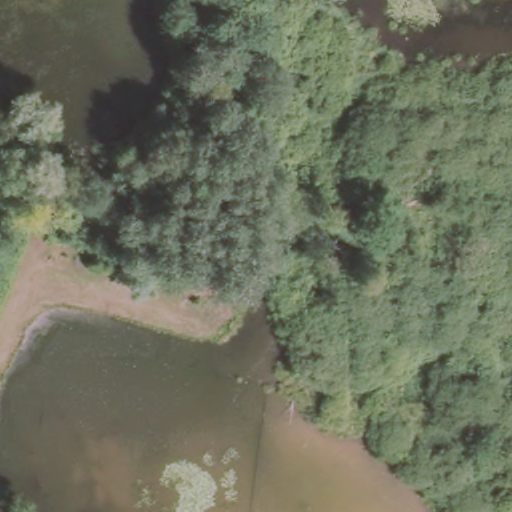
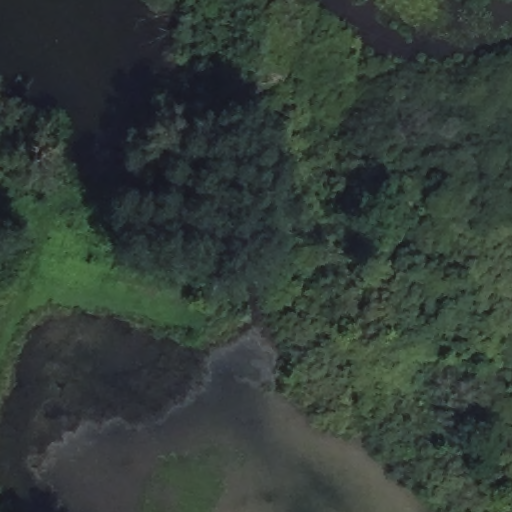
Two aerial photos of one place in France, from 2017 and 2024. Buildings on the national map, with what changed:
unchanged [(3,512),(0,512),(0,508),(3,512)]

